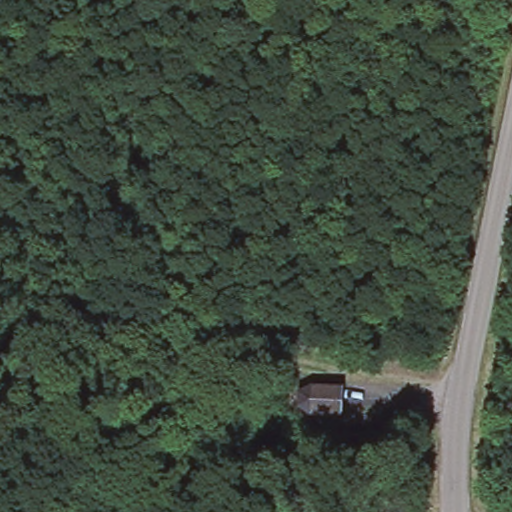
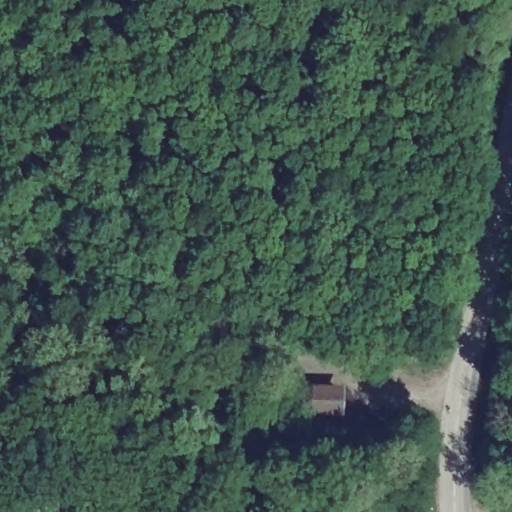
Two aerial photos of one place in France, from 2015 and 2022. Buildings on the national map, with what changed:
unchanged [(321,378),(347,378),(346,407),(323,406),(314,400),(313,384),(321,378)]

